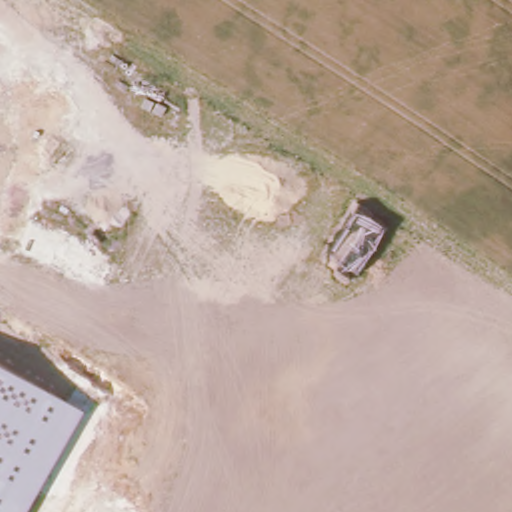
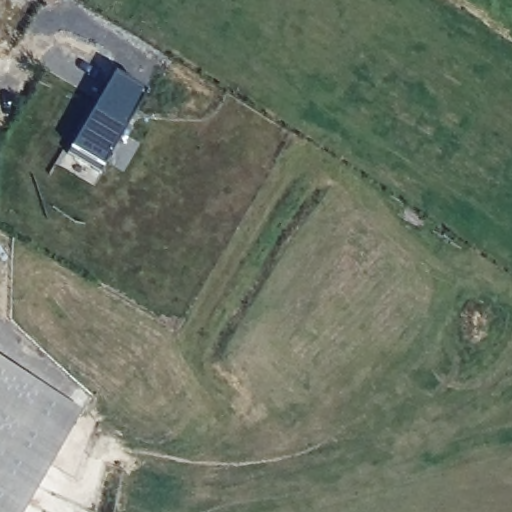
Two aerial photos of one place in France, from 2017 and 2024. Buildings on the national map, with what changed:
new [(145,92),(98,173),(65,154),(112,73),(145,92)]
unchanged [(23,512),(0,512),(0,363),(81,410),(23,512)]

